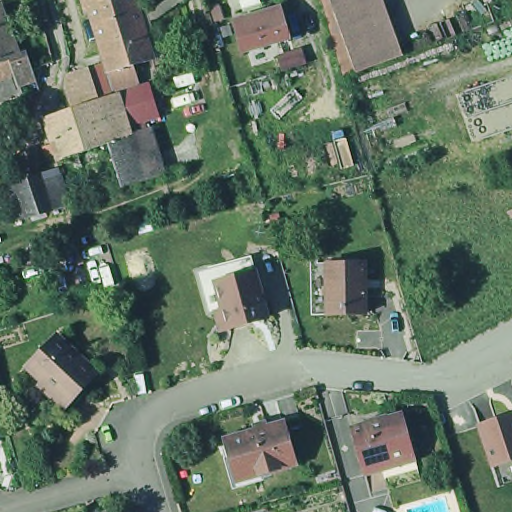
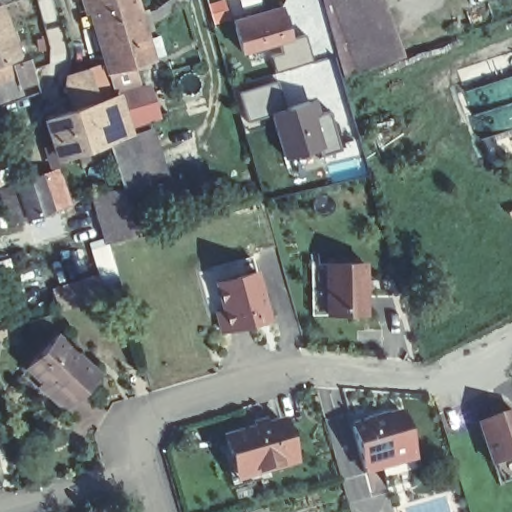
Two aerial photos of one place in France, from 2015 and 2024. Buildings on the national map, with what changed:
unchanged [(40,74),(24,80),(26,86),(0,95),(0,0),(7,0),(25,51),(31,49),(37,65),(40,74)]
unchanged [(87,0),(141,0),(143,9),(99,22),(95,7),(89,9),(87,0)]
unchanged [(343,0),(391,0),(411,55),(369,70),(343,0)]
unchanged [(118,88),(113,71),(99,22),(143,9),(157,59),(136,65),(140,82),(118,88)]
unchanged [(279,42),(246,52),(239,28),(273,18),(287,13),(294,38),(279,42)]
unchanged [(49,117),(76,108),(69,84),(71,75),(91,68),(93,76),(101,101),(120,94),(148,86),(149,86),(159,118),(158,118),(130,126),(133,136),(152,130),(158,154),(160,153),(166,175),(146,181),(123,188),(110,144),(62,159),(49,117)]
new [(286,110),(317,102),(321,116),(331,114),(342,150),(323,157),(321,153),(284,162),(273,117),(248,122),(240,93),(276,83),(286,110)]
unchanged [(33,213),(6,221),(0,202),(0,187),(22,180),(33,213)]
unchanged [(364,308),(342,309),(326,309),(325,258),(341,258),(349,258),(379,257),(380,308),(364,308)]
unchanged [(224,274),(256,266),(259,281),(228,289),(221,291),(223,297),(228,320),(221,322),(222,323),(214,325),(202,281),(224,274)]
unchanged [(221,322),(228,320),(223,297),(221,291),(228,289),(259,281),(272,327),(263,329),(255,331),(242,335),(226,339),(222,323),(221,322)]
unchanged [(38,362),(68,330),(108,368),(81,396),(74,403),(50,380),(53,377),(38,362)]
unchanged [(357,413),(383,405),(408,399),(419,439),(423,453),(398,460),(390,462),(388,454),(370,459),(369,453),(357,413)]
unchanged [(512,403),(512,448),(493,455),(479,414),(512,403)]
unchanged [(234,455),(241,453),(235,434),(293,417),(305,459),(270,469),(271,475),(243,483),(234,455)]
unchanged [(104,512),(92,512),(103,509),(104,512)]

